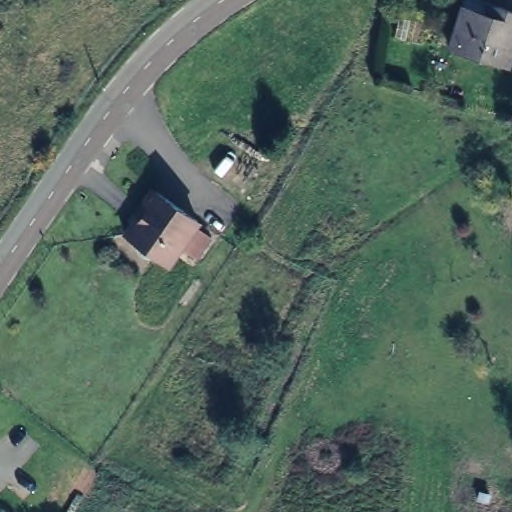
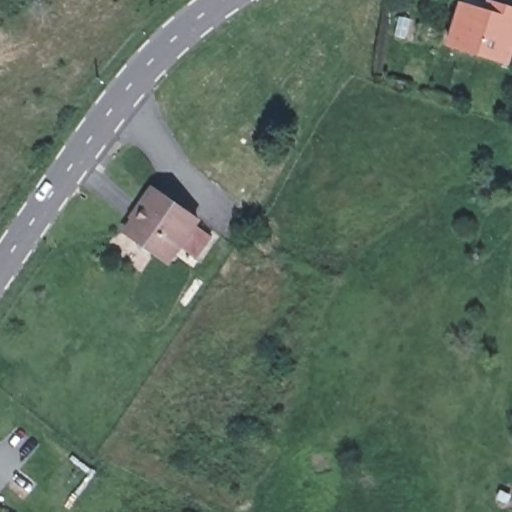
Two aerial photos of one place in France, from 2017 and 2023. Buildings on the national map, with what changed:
unchanged [(497,69),(442,51),(457,2),(512,20),(512,23),(497,69)]
unchanged [(194,227),(211,236),(192,257),(174,249),(165,257),(152,247),(147,250),(141,250),(134,245),(132,234),(122,226),(139,204),(136,202),(149,185),(197,218),(194,227)]

